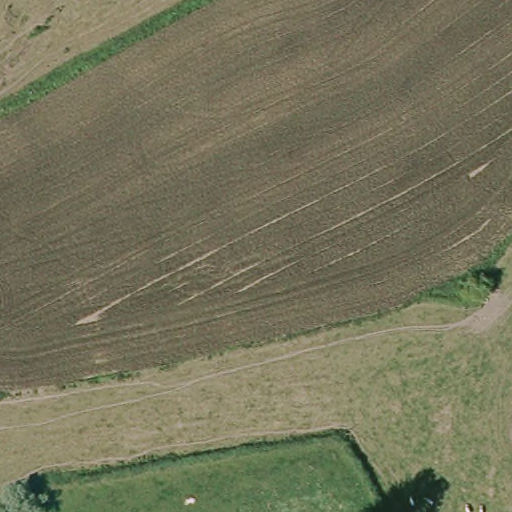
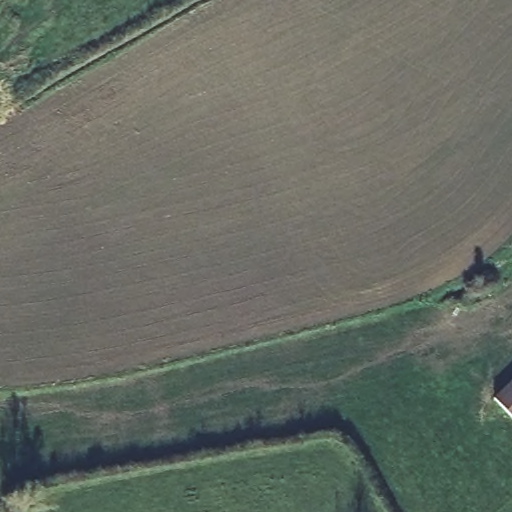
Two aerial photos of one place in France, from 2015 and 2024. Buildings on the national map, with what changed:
new [(494,397),(512,379),(512,416),(494,397)]

